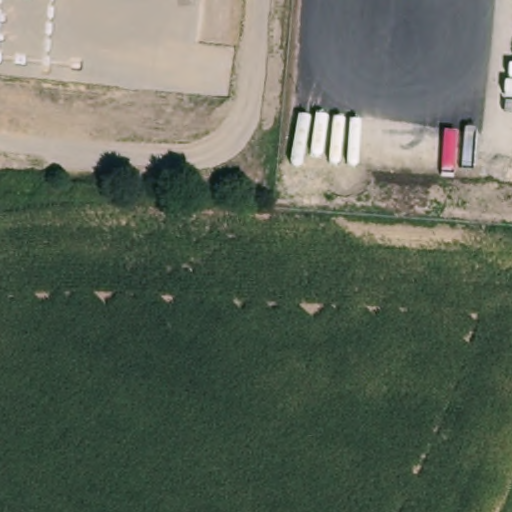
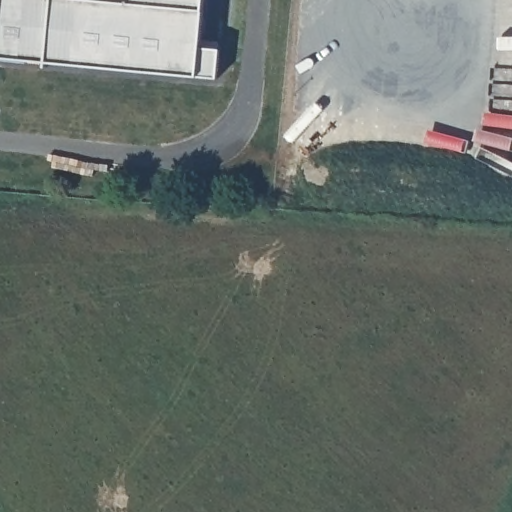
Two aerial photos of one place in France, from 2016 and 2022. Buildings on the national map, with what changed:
new [(201,9),(198,46),(218,48),(215,76),(195,74),(44,60),(0,55),(0,0),(202,0),(201,9)]

